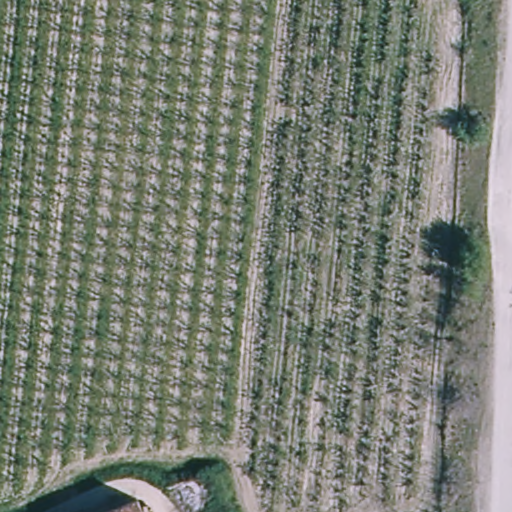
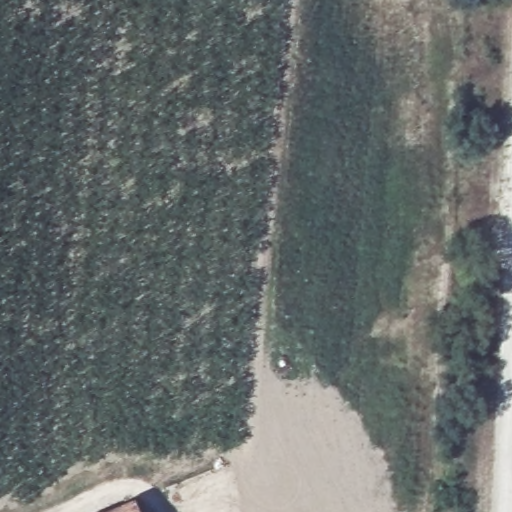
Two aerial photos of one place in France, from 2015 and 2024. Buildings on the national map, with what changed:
unchanged [(138,512),(88,512),(131,495),(138,512)]

